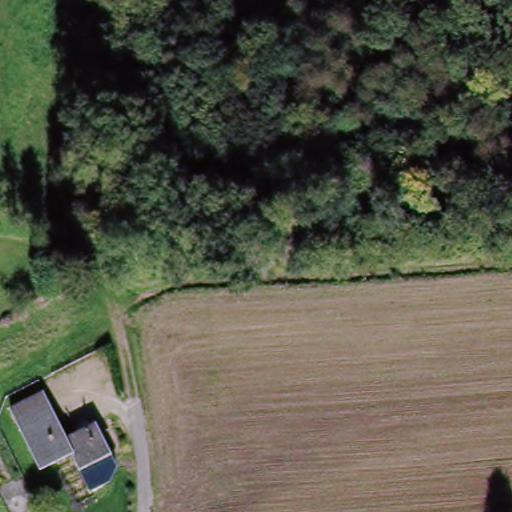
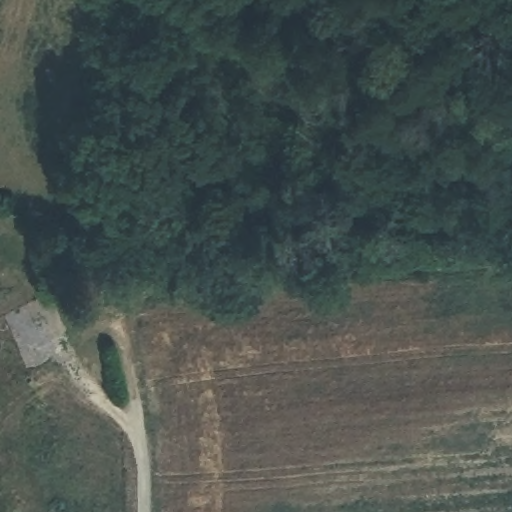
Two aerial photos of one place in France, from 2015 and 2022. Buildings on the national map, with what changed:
demolished [(22,451),(14,433),(21,429),(11,408),(46,392),(66,438),(93,427),(107,459),(81,470),(73,451),(31,469),(22,451)]

